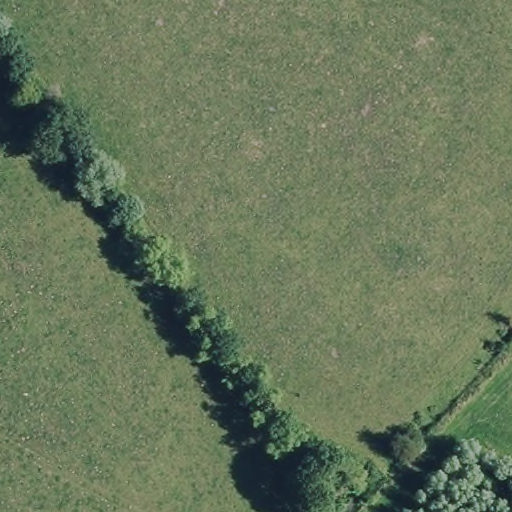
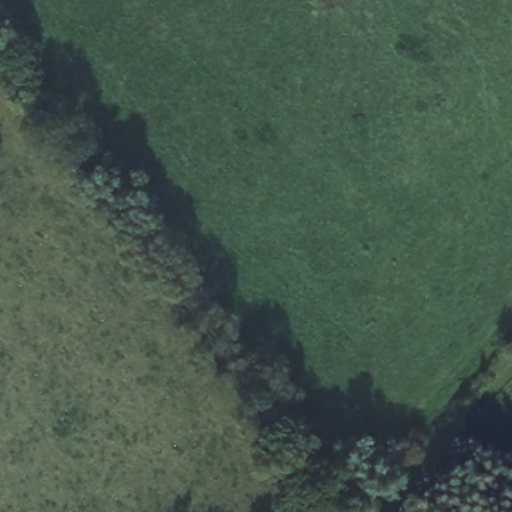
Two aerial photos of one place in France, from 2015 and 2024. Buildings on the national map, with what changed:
[]

